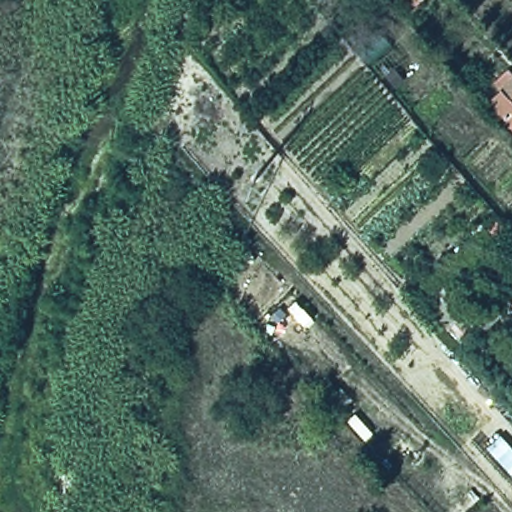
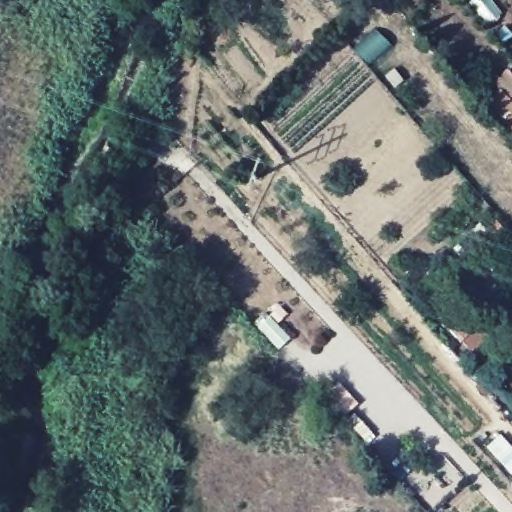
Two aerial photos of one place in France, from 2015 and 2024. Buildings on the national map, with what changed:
unchanged [(485,104),(497,95),(490,85),(505,71),(512,78),(512,98),(510,100),(512,104),(512,137),(485,104)]
unchanged [(419,304),(439,284),(445,294),(460,283),(489,321),(458,349),(419,304)]

